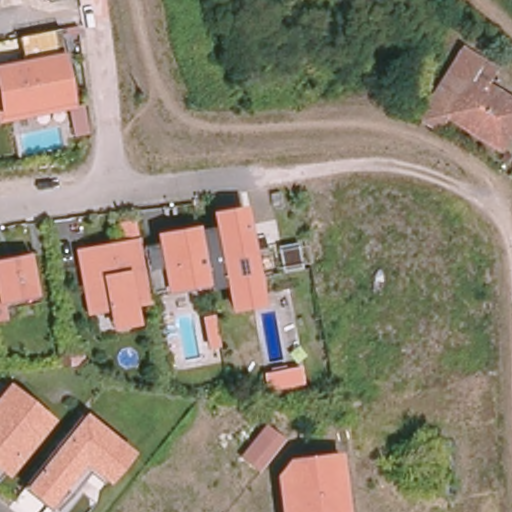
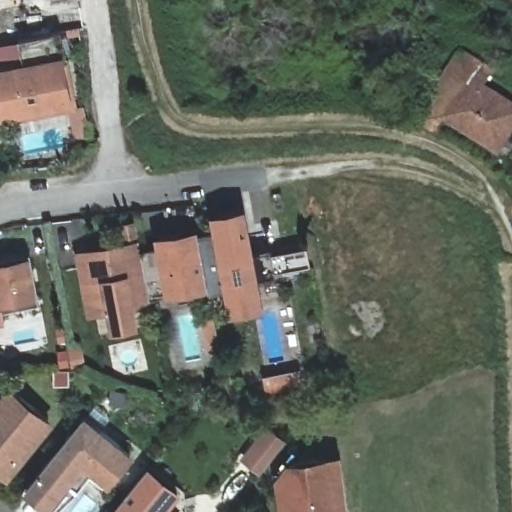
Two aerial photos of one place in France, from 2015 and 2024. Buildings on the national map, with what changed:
unchanged [(0,118),(0,115),(0,78),(26,72),(22,55),(60,47),(64,66),(57,67),(64,106),(66,115),(2,127),(0,118)]
unchanged [(512,101),(512,130),(500,149),(448,116),(437,132),(418,120),(463,48),(497,67),(487,85),(512,101)]
unchanged [(155,245),(153,232),(196,225),(198,231),(214,228),(210,212),(246,206),(254,250),(272,246),(298,241),(302,268),(277,274),(259,277),(265,307),(228,315),(223,288),(210,290),(208,286),(166,295),(149,300),(140,248),(155,245)]
unchanged [(111,323),(108,307),(103,307),(88,310),(83,280),(78,250),(85,250),(92,249),(138,240),(140,248),(149,300),(148,300),(130,303),(132,320),(111,323)]
unchanged [(3,313),(0,314),(0,262),(32,257),(37,292),(38,302),(2,308),(3,313)]
unchanged [(304,385),(266,392),(262,373),(302,365),(304,385)]
unchanged [(0,473),(0,393),(8,383),(53,420),(6,478),(0,473)]
unchanged [(84,465),(47,510),(23,488),(84,413),(133,452),(108,485),(84,465)]
unchanged [(259,475),(239,457),(265,423),(285,440),(259,475)]
unchanged [(289,459),(341,453),(349,512),(279,512),(274,473),(289,459)]
new [(148,463),(181,490),(170,504),(180,512),(108,512),(108,511),(148,463)]

